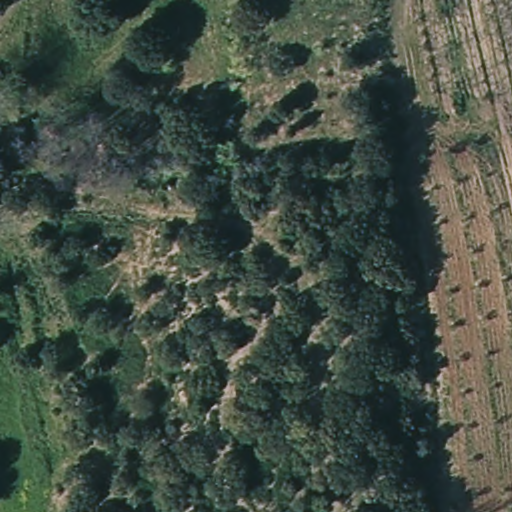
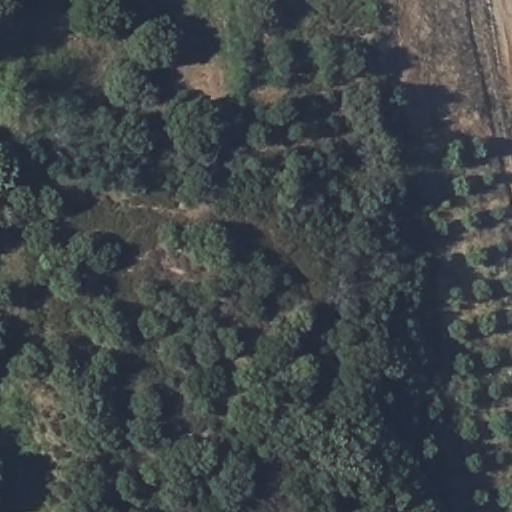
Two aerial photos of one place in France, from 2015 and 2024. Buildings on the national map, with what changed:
[]

